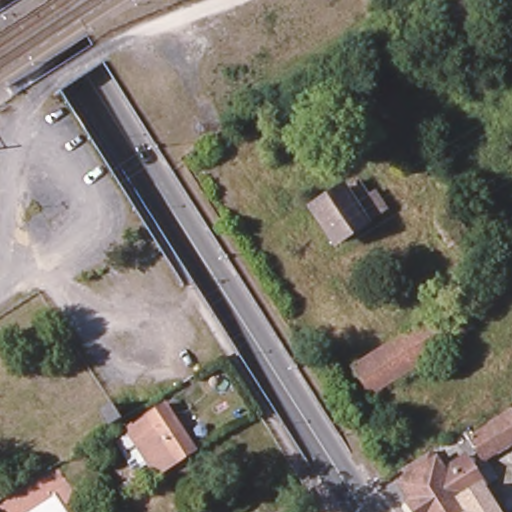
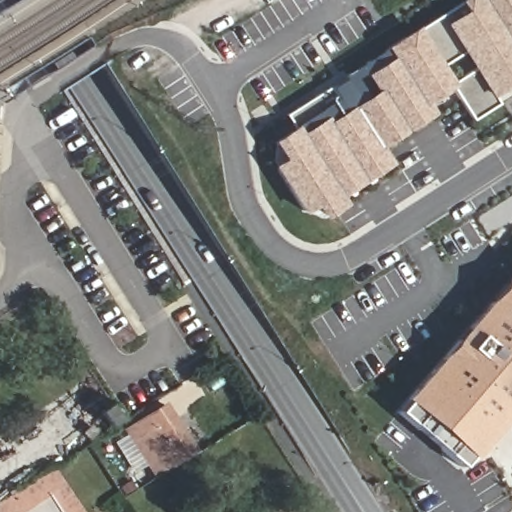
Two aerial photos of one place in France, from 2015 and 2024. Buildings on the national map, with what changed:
new [(274,144),(294,131),(299,139),(323,122),(327,127),(379,92),(369,76),(396,59),(390,50),(442,15),(461,3),(466,0),(512,0),(512,82),(492,96),(498,104),(472,121),(450,86),(437,95),(422,103),(429,114),(415,123),(392,137),(376,147),(387,165),(372,174),(348,190),(341,179),(338,175),(322,185),(337,208),(319,219),(315,222),(304,212),(275,167),(272,162),(274,144)]
new [(329,87),(338,102),(323,112),(294,131),(285,116),(313,97),(329,87)]
demolished [(367,201),(374,197),(382,210),(363,222),(365,225),(334,245),(311,210),(342,189),(343,191),(355,183),(367,201)]
demolished [(458,241),(448,247),(434,225),(443,219),(458,241)]
new [(398,412),(459,341),(470,328),(512,280),(512,408),(461,466),(398,412)]
demolished [(370,396),(352,367),(446,308),(464,336),(370,396)]
unchanged [(154,476),(123,430),(163,403),(194,449),(154,476)]
demolished [(468,437),(512,410),(512,444),(483,462),(468,437)]
demolished [(500,512),(413,512),(404,498),(408,496),(397,477),(406,472),(401,465),(427,449),(431,456),(435,454),(442,466),(462,453),(500,512)]

